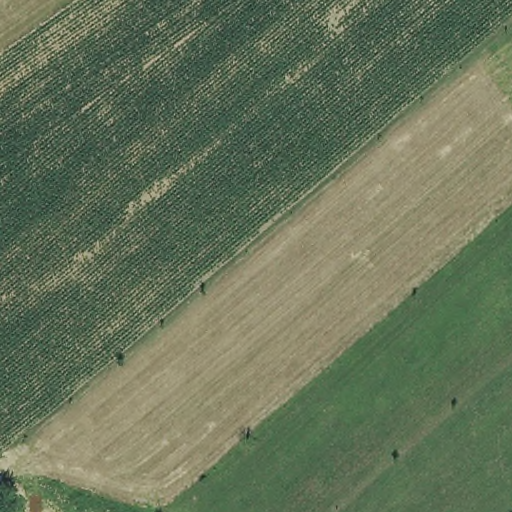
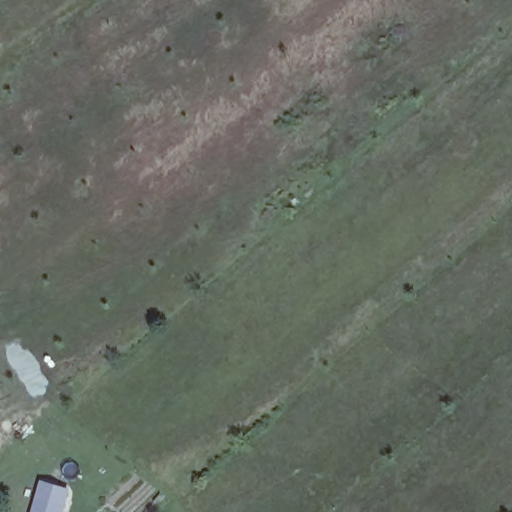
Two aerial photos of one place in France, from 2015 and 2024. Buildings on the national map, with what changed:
new [(32,512),(39,484),(67,492),(61,512),(32,512)]

